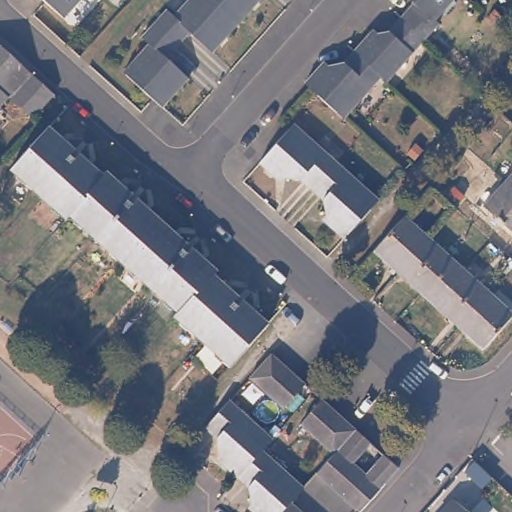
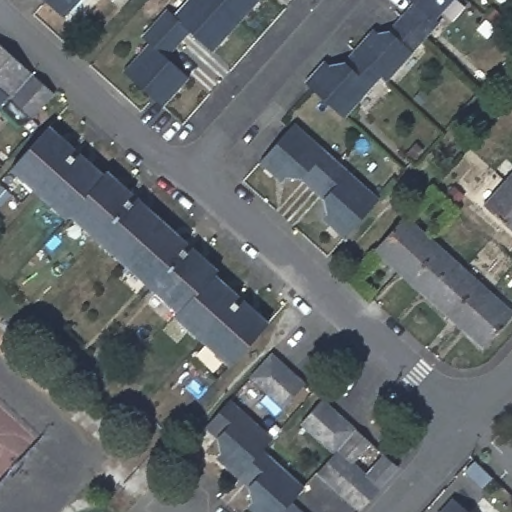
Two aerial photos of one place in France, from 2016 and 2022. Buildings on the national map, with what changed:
unchanged [(62,16),(45,0),(76,0),(62,16)]
unchanged [(215,51),(193,31),(169,57),(191,77),(165,106),(126,70),(152,42),(144,35),(169,7),(177,14),(190,0),(262,0),(215,51)]
unchanged [(368,30),(374,24),(379,29),(390,28),(415,0),(452,0),(436,18),(440,21),(389,77),(383,72),(345,114),(312,85),(306,79),(320,64),(326,57),(328,59),(330,61),(344,57),(368,30)]
unchanged [(30,80),(25,86),(48,106),(31,124),(8,103),(0,112),(0,52),(30,80)]
unchanged [(328,213),(326,200),(304,180),(290,178),(286,182),(280,177),(264,162),(294,128),(298,124),(382,201),(347,238),(332,224),(325,218),(328,213)]
unchanged [(245,305),(269,327),(231,369),(177,320),(181,316),(72,216),(68,220),(15,172),(53,130),(77,152),(71,158),(75,163),(82,155),(106,178),(109,175),(135,198),(128,205),(133,209),(140,202),(189,248),(183,255),(188,259),(195,252),(220,275),(216,279),(240,301),(234,307),(239,312),(245,305)]
unchanged [(491,154),(485,161),(472,149),(478,142),(491,154)]
unchanged [(512,184),(512,191),(508,188),(512,184)]
unchanged [(498,194),(501,196),(508,188),(512,191),(512,234),(484,208),(498,194)]
unchanged [(399,269),(391,262),(389,265),(372,251),(404,216),(420,230),(417,233),(425,240),(399,269)]
unchanged [(434,249),(437,245),(448,256),(417,291),(405,280),(408,277),(399,269),(425,240),(434,249)]
unchanged [(459,323),(450,315),(448,318),(417,291),(448,256),(478,283),(475,286),(485,294),(459,323)]
unchanged [(492,301),(495,299),(511,313),(481,348),(464,334),(467,331),(459,323),(485,294),(492,301)]
unchanged [(306,382),(284,406),(256,381),(251,377),(273,352),(278,357),(306,382)]
unchanged [(372,442),(354,462),(368,474),(385,454),(398,466),(359,509),(319,472),(336,453),(302,423),(324,398),(368,438),(372,442)]
unchanged [(249,485),(228,467),(222,462),(226,458),(219,439),(206,426),(231,399),(274,437),(264,448),(306,487),(293,501),(306,512),(256,512),(255,512),(249,507),(253,502),(249,485)]
unchanged [(467,512),(440,512),(452,499),(467,512)]

